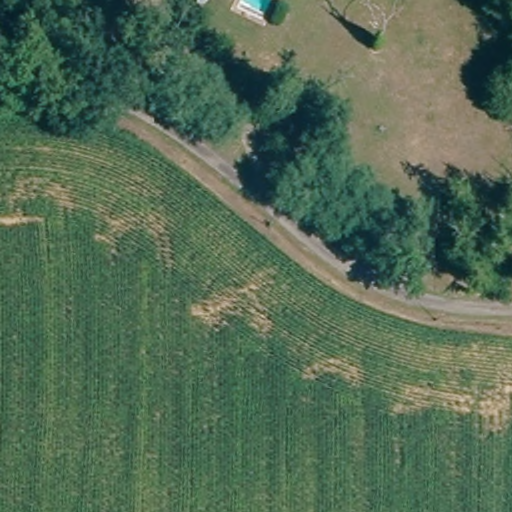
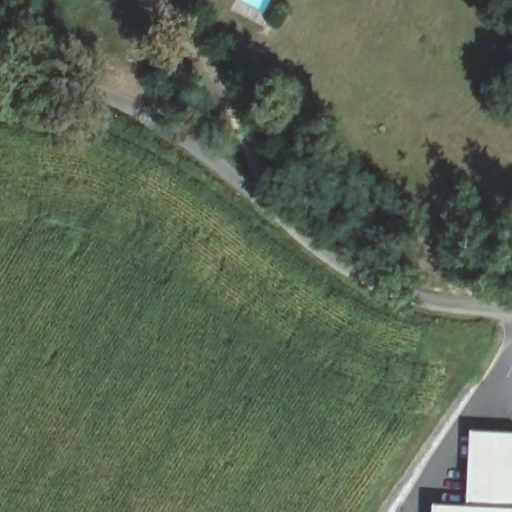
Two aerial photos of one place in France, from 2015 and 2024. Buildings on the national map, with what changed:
new [(435,507),(468,508),(471,433),(512,435),(512,512),(435,512),(435,507)]

